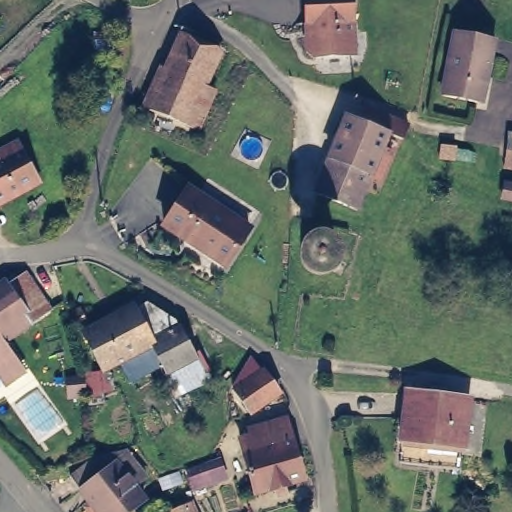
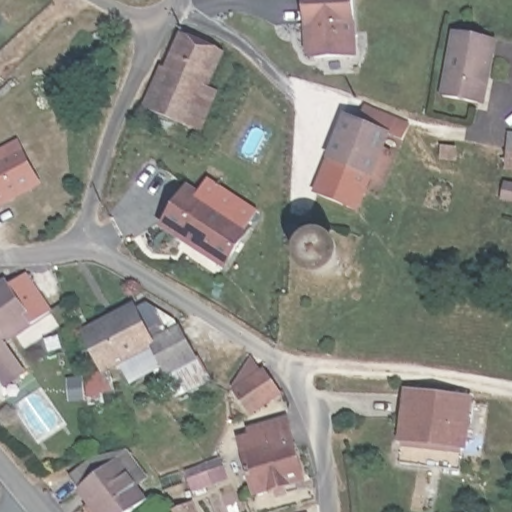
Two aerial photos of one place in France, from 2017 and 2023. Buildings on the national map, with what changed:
unchanged [(304,0),(351,0),(354,50),(313,52),(306,46),(306,37),(306,19),(304,0)]
unchanged [(470,98),(437,92),(449,28),(487,36),(481,71),(476,99),(470,98)]
unchanged [(194,129),(183,124),(147,108),(140,104),(149,82),(156,85),(179,37),(213,52),(198,87),(211,93),(194,129)]
unchanged [(354,200),(351,209),(311,193),(341,117),(380,132),(374,151),(382,156),(368,194),(364,204),(354,200)]
unchanged [(512,136),(512,166),(507,166),(509,136),(512,136)]
unchanged [(454,149),(453,161),(439,159),(441,147),(454,149)]
unchanged [(49,189),(0,214),(0,165),(28,151),(49,189)]
unchanged [(512,185),(512,201),(504,200),(506,184),(512,185)]
unchanged [(189,189),(249,228),(225,266),(164,227),(189,189)]
unchanged [(49,306),(3,338),(23,368),(5,379),(0,372),(0,286),(24,270),(49,306)]
unchanged [(148,305),(181,327),(214,383),(172,400),(163,371),(127,383),(124,367),(106,376),(104,374),(79,331),(133,303),(148,305)]
unchanged [(256,417),(241,395),(236,392),(254,367),(267,378),(269,376),(283,397),(284,399),(256,417)]
unchanged [(104,404),(87,406),(86,397),(64,397),(64,379),(104,374),(104,404)]
unchanged [(403,446),(404,439),(401,439),(407,393),(467,400),(464,445),(459,445),(458,452),(403,446)]
unchanged [(279,498),(276,488),(257,494),(240,442),(249,439),(248,431),(287,421),(294,443),(304,479),(281,486),(284,496),(279,498)]
unchanged [(148,478),(134,488),(145,502),(132,512),(94,512),(89,505),(89,503),(70,477),(92,461),(127,452),(148,478)]
unchanged [(223,461),(230,479),(199,490),(193,473),(223,461)]

